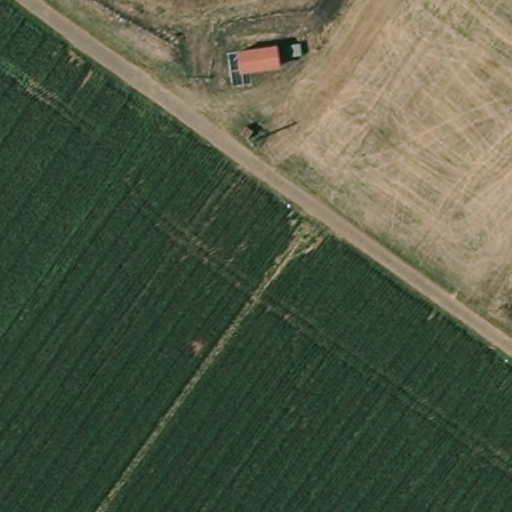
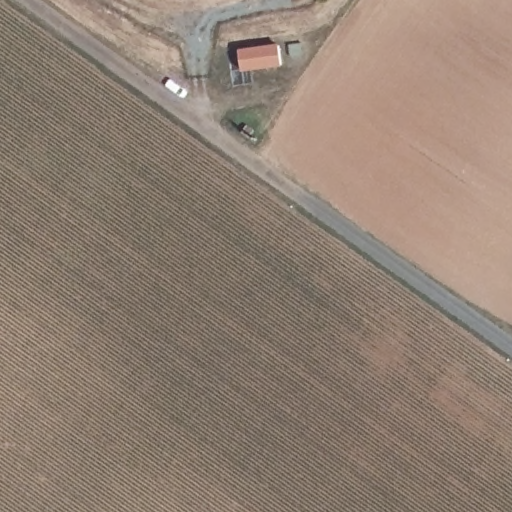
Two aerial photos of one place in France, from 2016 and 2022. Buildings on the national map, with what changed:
unchanged [(282,67),(243,73),(240,52),(279,46),(282,67)]

